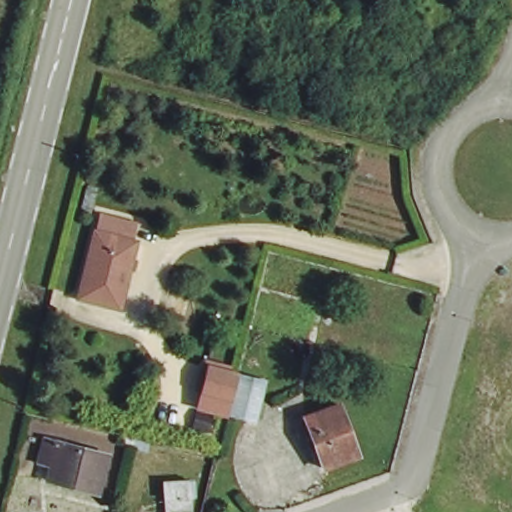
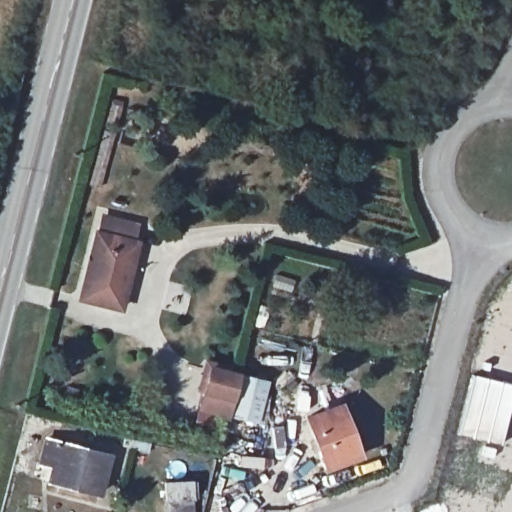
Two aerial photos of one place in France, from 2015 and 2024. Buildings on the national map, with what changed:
unchanged [(137,242),(123,303),(87,295),(103,233),(137,242)]
unchanged [(198,413),(204,395),(196,392),(205,359),(218,362),(217,366),(269,380),(258,424),(198,413)]
new [(512,384),(512,396),(500,444),(457,433),(472,375),(512,384)]
unchanged [(347,405),(365,455),(330,467),(312,416),(347,405)]
unchanged [(109,448),(101,485),(53,472),(57,453),(39,448),(43,432),(109,448)]
unchanged [(171,512),(173,481),(198,482),(197,512),(171,512)]

